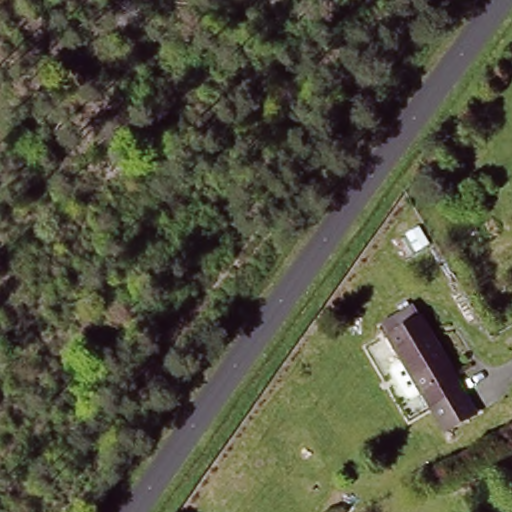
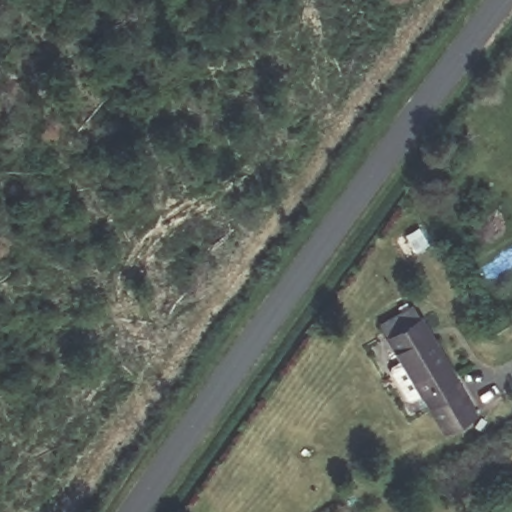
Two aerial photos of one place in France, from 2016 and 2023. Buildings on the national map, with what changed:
unchanged [(394,366),(406,357),(392,335),(424,315),(480,411),(448,430),(423,390),(414,397),(394,366)]

